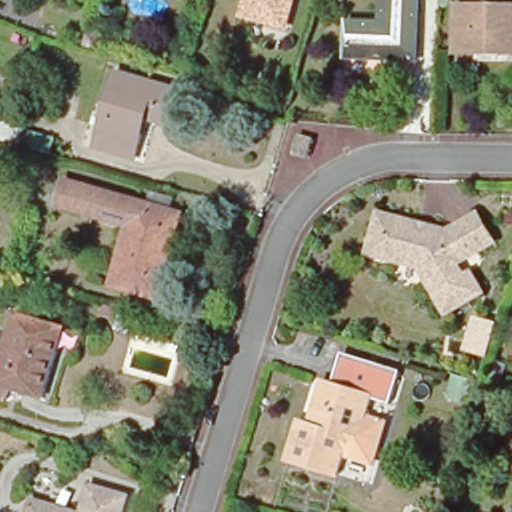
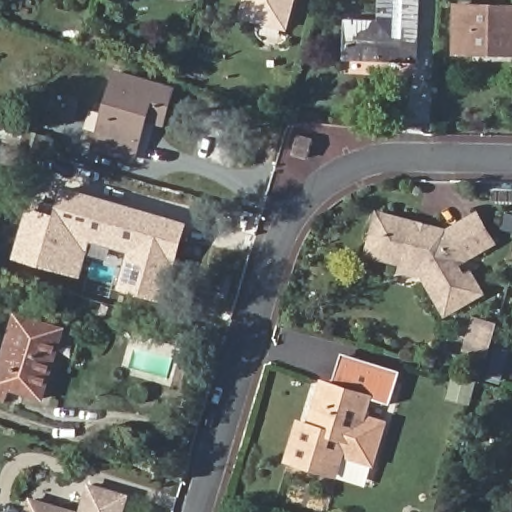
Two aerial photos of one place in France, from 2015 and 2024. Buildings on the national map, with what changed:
unchanged [(261,0),(303,0),(295,28),(256,16),(261,0)]
unchanged [(425,0),(422,65),(356,61),(357,26),(376,26),(377,8),(377,0),(425,0)]
unchanged [(451,51),(453,4),(512,5),(512,54),(451,51)]
unchanged [(119,161),(92,154),(112,80),(171,96),(161,133),(143,127),(136,151),(132,165),(119,161)]
unchanged [(17,142),(0,137),(0,101),(26,110),(17,142)]
unchanged [(302,139),(302,151),(289,150),(290,139),(302,139)]
unchanged [(128,231),(59,210),(67,183),(183,218),(159,303),(112,289),(128,231)]
new [(28,208),(54,215),(62,188),(66,188),(59,210),(128,231),(123,251),(91,242),(80,278),(12,259),(28,208)]
unchanged [(477,290),(442,310),(420,269),(401,265),(365,256),(378,212),(414,222),(425,225),(442,229),(472,211),(489,240),(459,258),(466,272),(477,290)]
unchanged [(9,387),(6,400),(0,398),(0,364),(15,314),(61,328),(41,397),(9,387)]
new [(473,318),(492,324),(484,353),(464,348),(473,318)]
unchanged [(358,447),(346,444),(336,477),(289,464),(300,426),(311,430),(323,388),(341,393),(349,364),(371,370),(398,377),(390,407),(370,402),(358,447)]
unchanged [(90,492),(124,503),(122,512),(84,512),(90,492)]
unchanged [(31,506),(52,512),(29,512),(31,506)]

